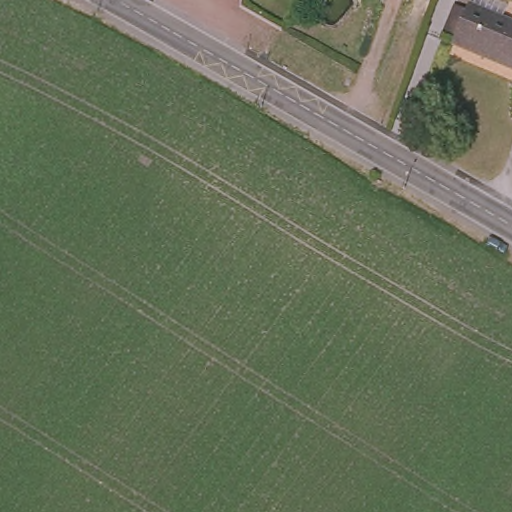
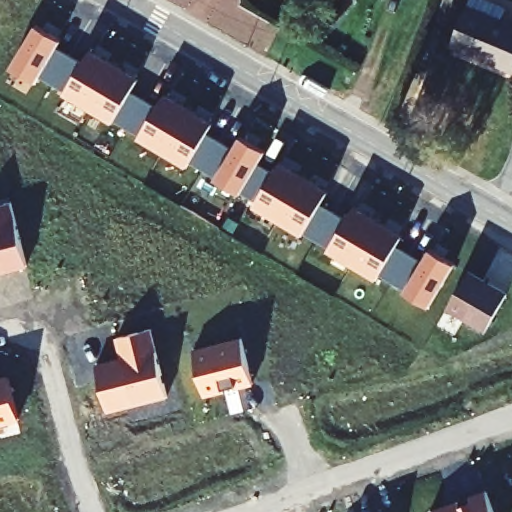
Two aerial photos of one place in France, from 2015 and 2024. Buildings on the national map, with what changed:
unchanged [(466,2),(467,0),(494,0),(490,10),(512,18),(512,62),(450,42),(466,2)]
new [(62,39),(59,44),(85,59),(90,47),(140,77),(133,87),(160,102),(165,92),(215,121),(209,129),(235,145),(240,136),(267,151),(262,160),(275,167),(280,160),(330,189),(324,200),(349,214),(355,205),(404,233),(398,243),(425,258),(430,247),(455,263),(430,307),(405,291),(407,287),(382,271),(377,278),(329,249),(331,245),(305,230),(302,236),(254,207),(259,199),(243,190),(240,195),(214,180),(217,174),(192,160),(188,167),(139,137),(141,132),(117,119),(115,123),(65,94),(67,89),(42,74),(36,84),(10,68),(37,24),(62,39)]
new [(27,267),(0,273),(0,205),(12,202),(27,267)]
new [(509,292),(487,331),(447,308),(469,268),(509,292)]
new [(168,397),(109,411),(97,362),(120,357),(115,337),(153,329),(168,397)]
new [(255,383),(206,394),(194,347),(242,337),(255,383)]
new [(20,419),(0,425),(0,377),(10,375),(20,419)]
new [(496,512),(430,512),(432,508),(489,490),(496,512)]

